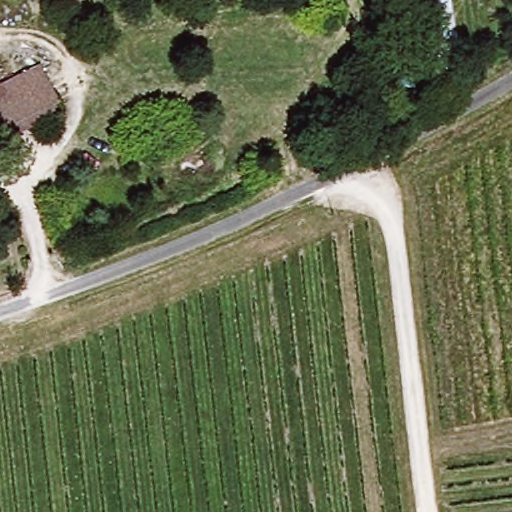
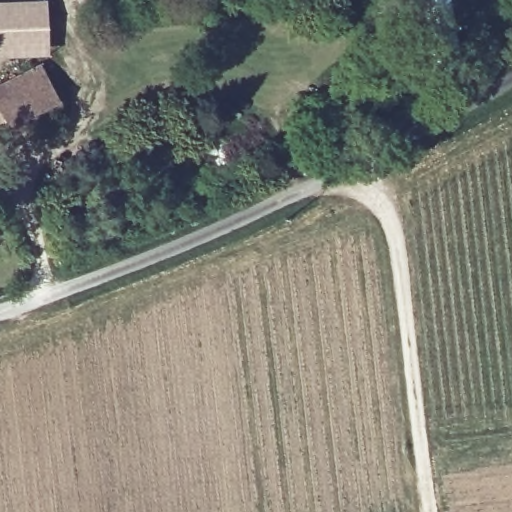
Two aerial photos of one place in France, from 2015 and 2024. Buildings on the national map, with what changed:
new [(47,0),(49,55),(0,57),(0,1),(31,0),(47,0)]
unchanged [(412,0),(450,0),(458,62),(423,69),(412,0)]
unchanged [(5,129),(0,119),(0,90),(41,70),(62,113),(38,125),(11,139),(5,129)]

